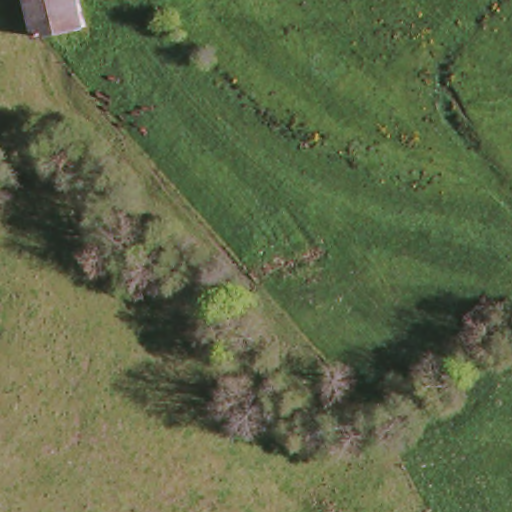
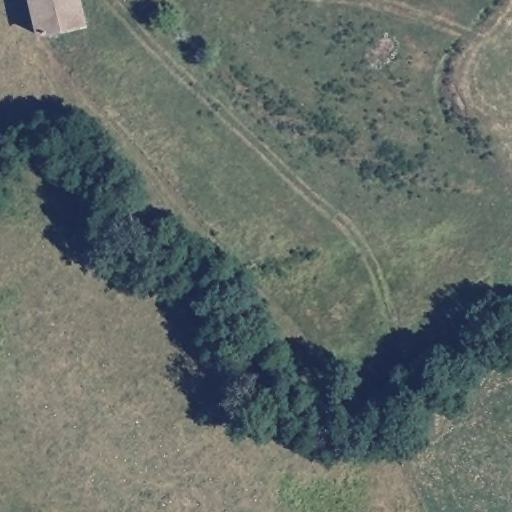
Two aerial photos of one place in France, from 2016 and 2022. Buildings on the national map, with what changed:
unchanged [(44,39),(40,0),(81,0),(85,33),(44,39)]

